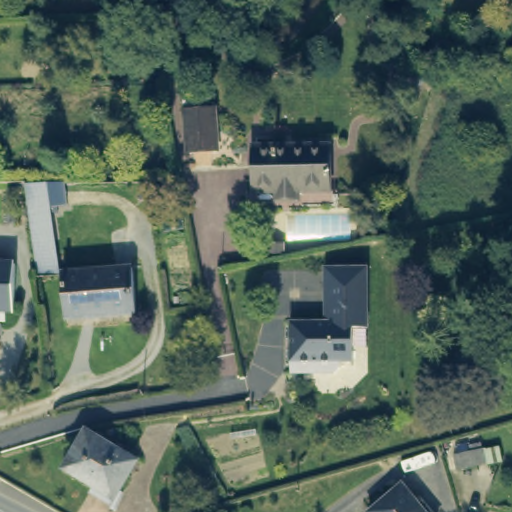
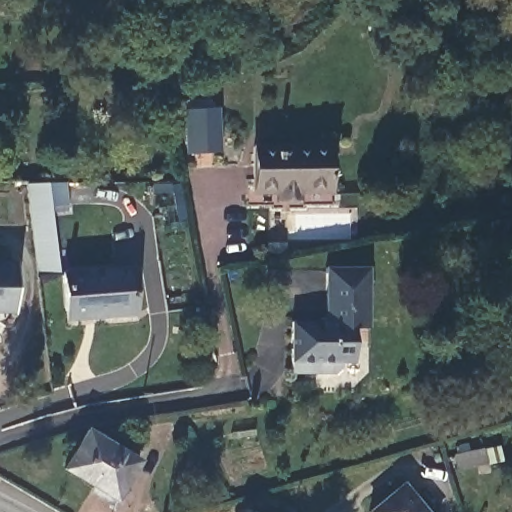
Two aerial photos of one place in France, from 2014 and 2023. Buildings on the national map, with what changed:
unchanged [(215,147),(187,150),(184,108),(212,106),(215,146),(215,147)]
unchanged [(297,198),(297,202),(281,202),(281,198),(256,199),(255,153),(332,152),(333,197),(297,198)]
unchanged [(70,207),(52,210),(57,274),(37,277),(25,184),(67,182),(70,207)]
unchanged [(19,265),(17,308),(0,308),(0,264),(19,265)]
unchanged [(130,270),(134,317),(96,320),(95,312),(65,315),(62,275),(130,270)]
unchanged [(369,273),(369,333),(354,333),(353,367),(341,367),(341,373),(336,378),(292,378),(291,354),(296,354),(296,345),(291,345),(292,327),(326,327),(326,273),(369,273)]
unchanged [(91,430),(142,461),(119,498),(68,467),(91,430)]
unchanged [(455,481),(452,466),(482,459),(485,473),(455,481)]
unchanged [(403,492),(421,512),(380,512),(403,492)]

